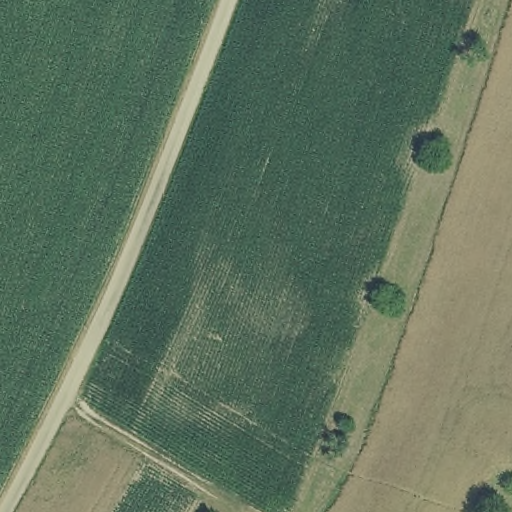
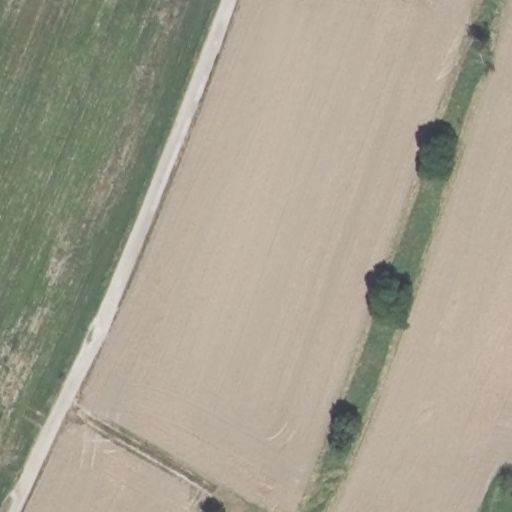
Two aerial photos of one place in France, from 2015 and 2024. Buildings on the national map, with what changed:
[]

